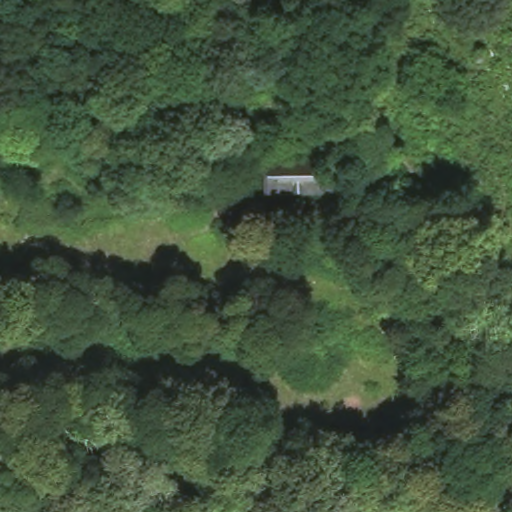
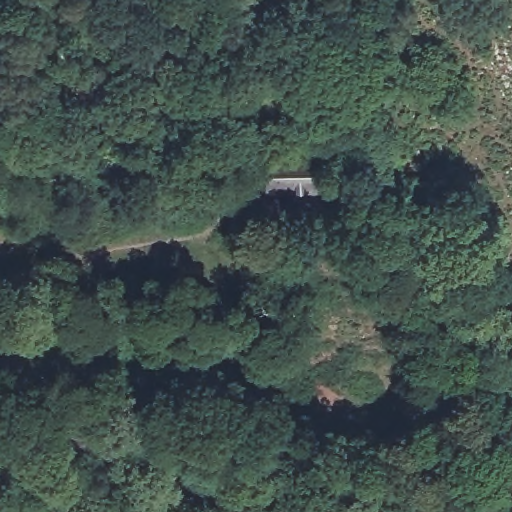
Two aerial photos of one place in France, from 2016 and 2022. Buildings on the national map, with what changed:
unchanged [(331,153),(331,188),(257,186),(257,154),(331,153)]

